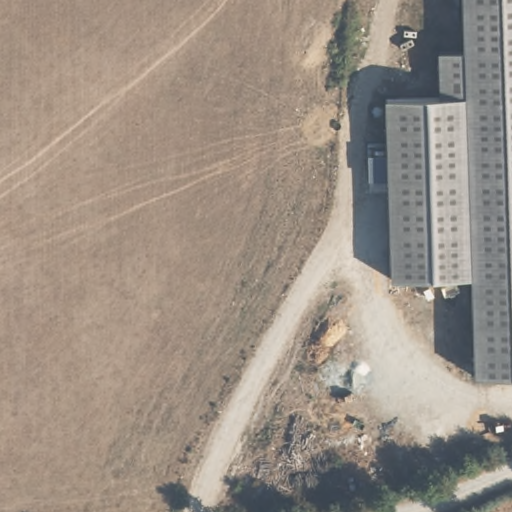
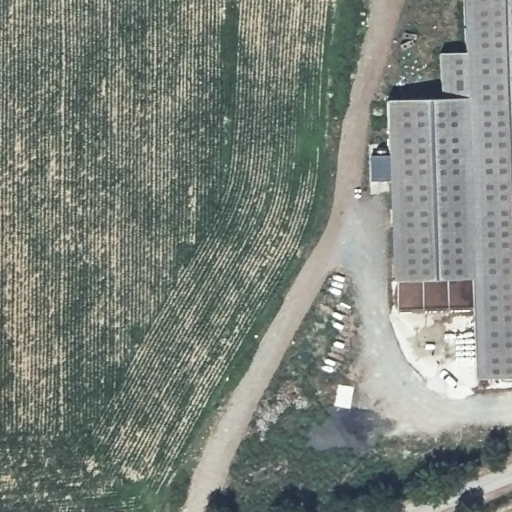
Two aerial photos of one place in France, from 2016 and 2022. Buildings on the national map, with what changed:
unchanged [(512,371),(472,371),(468,273),(389,272),(384,96),(440,95),(440,49),(463,47),(462,0),(512,0),(512,371)]

